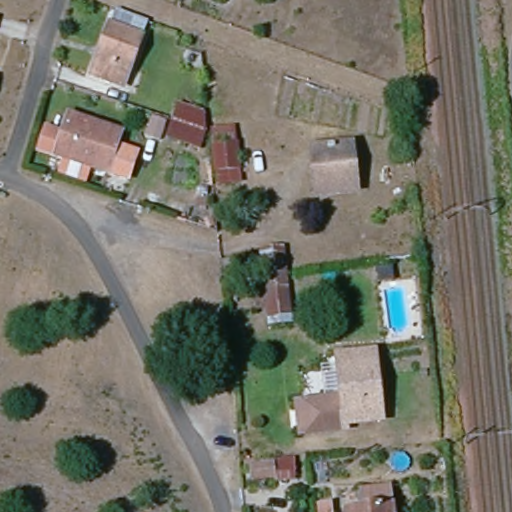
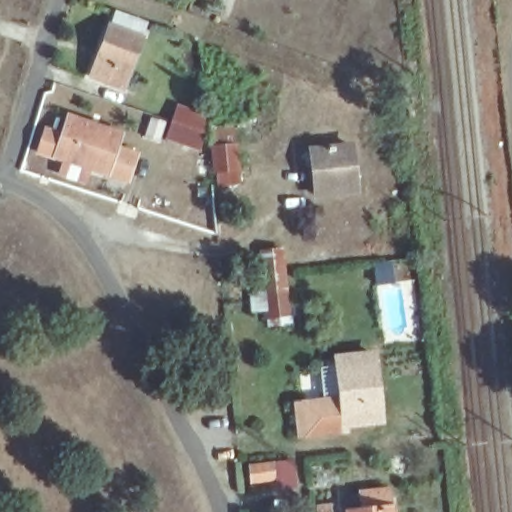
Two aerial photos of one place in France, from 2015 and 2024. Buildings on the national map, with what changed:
unchanged [(237,5),(224,0),(239,0),(237,5)]
unchanged [(112,16),(146,28),(122,95),(90,81),(112,16)]
unchanged [(0,21),(0,19),(1,20),(0,21)]
unchanged [(208,146),(166,134),(172,116),(177,100),(206,107),(207,127),(208,146)]
unchanged [(44,126),(61,131),(67,111),(124,129),(114,170),(38,146),(44,126)]
unchanged [(237,126),(247,180),(231,183),(221,185),(210,130),(237,126)]
unchanged [(319,190),(316,163),(322,162),(321,145),(354,144),(360,185),(319,190)]
unchanged [(297,325),(269,327),(265,312),(256,311),(251,281),(262,277),(257,252),(286,248),(297,325)]
unchanged [(382,420),(347,424),(347,428),(311,433),(308,404),(343,400),(340,356),(378,353),(382,420)]
unchanged [(380,491),(379,480),(395,480),(396,491),(397,512),(355,512),(353,494),(380,491)]

